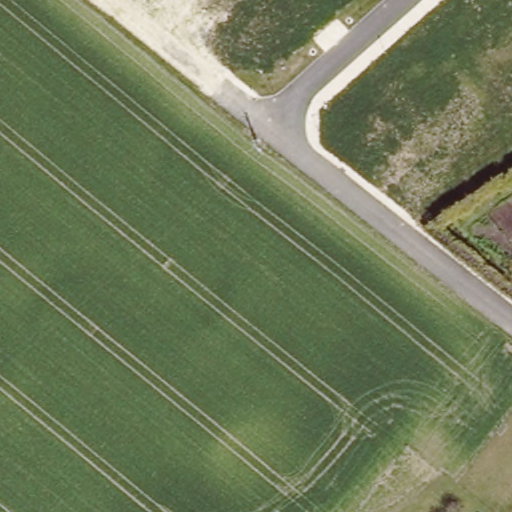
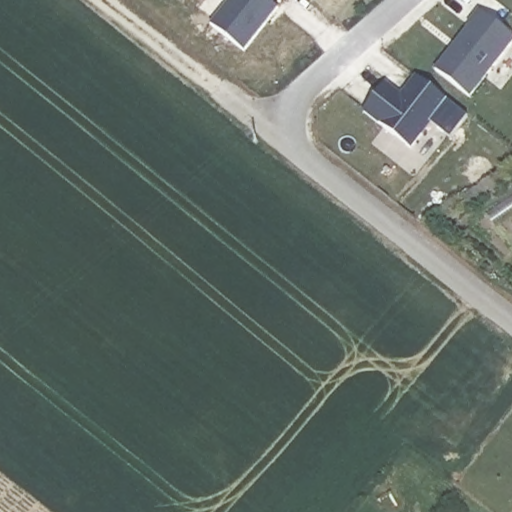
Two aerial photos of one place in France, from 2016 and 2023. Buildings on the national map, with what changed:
new [(213,25),(233,0),(268,0),(280,9),(247,51),(213,25)]
new [(436,69),(471,25),(470,23),(480,10),(512,36),(512,47),(474,98),(436,69)]
new [(365,112),(387,83),(403,95),(416,78),(448,101),(412,147),(365,112)]

